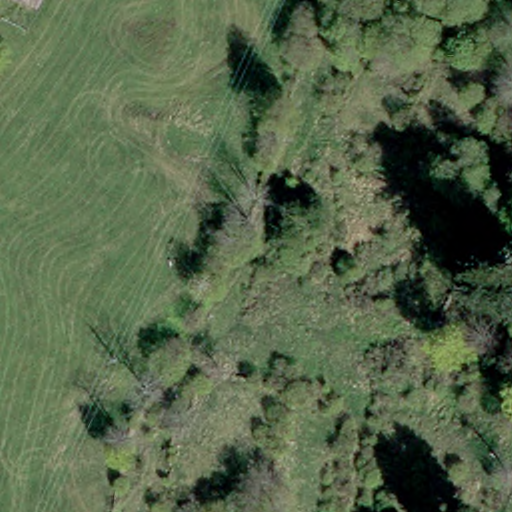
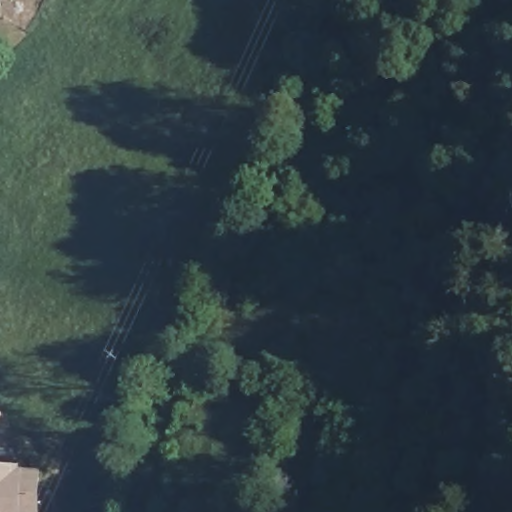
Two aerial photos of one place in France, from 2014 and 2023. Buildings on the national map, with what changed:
new [(22,469),(39,469),(38,512),(0,512),(0,465),(22,465),(22,469)]

